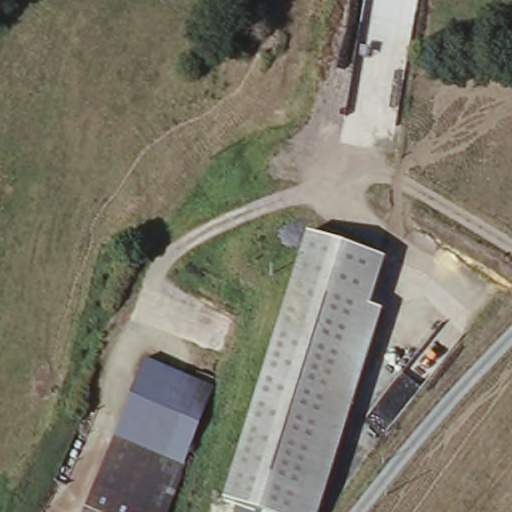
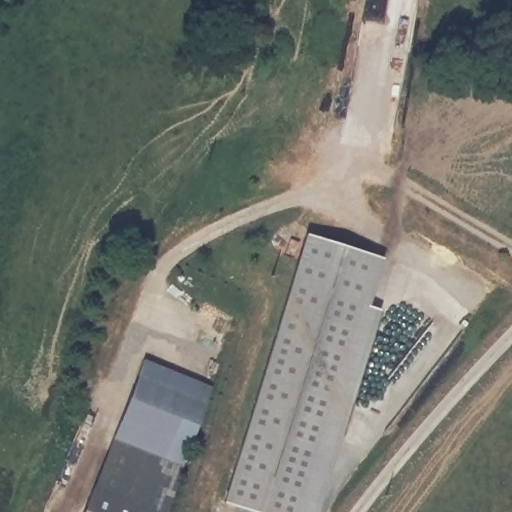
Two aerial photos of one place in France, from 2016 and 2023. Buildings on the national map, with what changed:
unchanged [(385,257),(371,304),(382,308),(319,512),(252,512),(222,502),(306,233),(385,257)]
unchanged [(213,392),(167,512),(155,512),(95,489),(146,360),(213,392)]
unchanged [(155,512),(85,512),(95,489),(155,512)]

